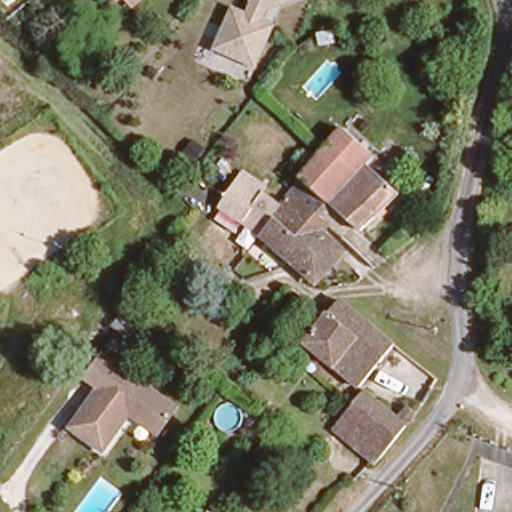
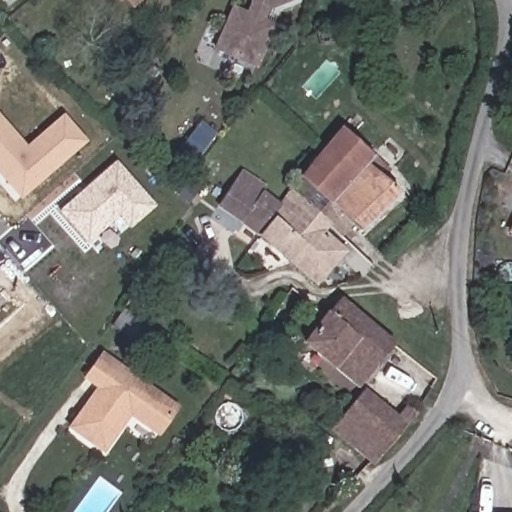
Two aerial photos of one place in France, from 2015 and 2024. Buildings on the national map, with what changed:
unchanged [(250,0),(296,0),(280,8),(257,68),(215,51),(231,6),(246,10),(251,2),(250,0)]
new [(0,178),(0,115),(26,145),(65,114),(87,142),(20,201),(0,178)]
new [(183,146),(201,121),(216,133),(199,157),(183,146)]
unchanged [(340,123),(375,153),(368,160),(400,187),(360,225),(353,218),(342,231),(328,217),(291,182),(340,123)]
new [(127,228),(117,219),(85,245),(57,212),(113,163),(151,206),(127,228)]
unchanged [(291,182),(328,217),(320,226),(340,245),(313,275),(296,260),(281,248),(256,226),(247,239),(234,227),(243,215),(220,198),(241,164),(265,180),(262,186),(275,195),(270,206),(271,207),(277,197),(291,182)]
new [(512,223),(512,234),(507,233),(512,223)]
unchanged [(302,338),(324,309),(337,294),(340,296),(391,340),(359,380),(302,338)]
unchanged [(140,341),(119,326),(130,311),(150,325),(140,341)]
unchanged [(146,386),(178,408),(160,434),(139,420),(139,415),(134,411),(105,452),(100,449),(71,428),(100,388),(86,378),(103,355),(146,386)]
unchanged [(362,383),(395,410),(406,399),(414,404),(386,437),(345,404),(362,383)]
unchanged [(370,455),(330,422),(345,404),(386,437),(370,455)]

